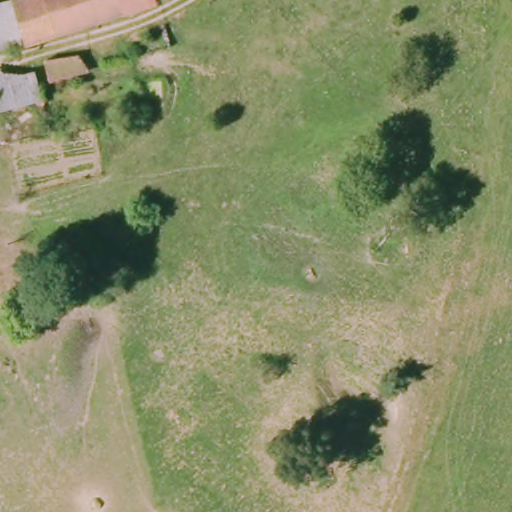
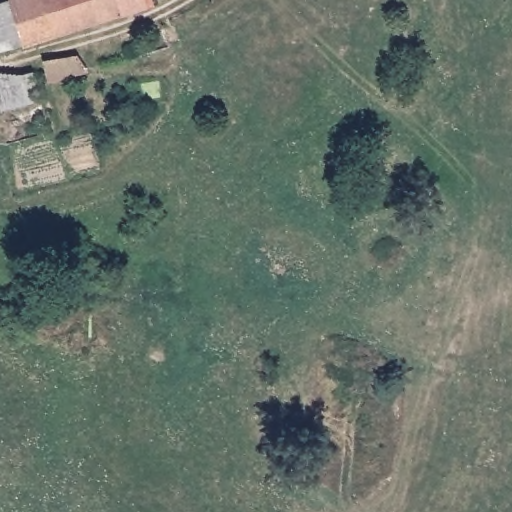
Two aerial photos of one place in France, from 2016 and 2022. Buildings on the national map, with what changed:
unchanged [(0,53),(0,2),(8,0),(152,0),(154,7),(0,53)]
unchanged [(47,63),(73,60),(75,84),(49,87),(47,63)]
unchanged [(30,72),(37,102),(0,112),(0,71),(30,72)]

